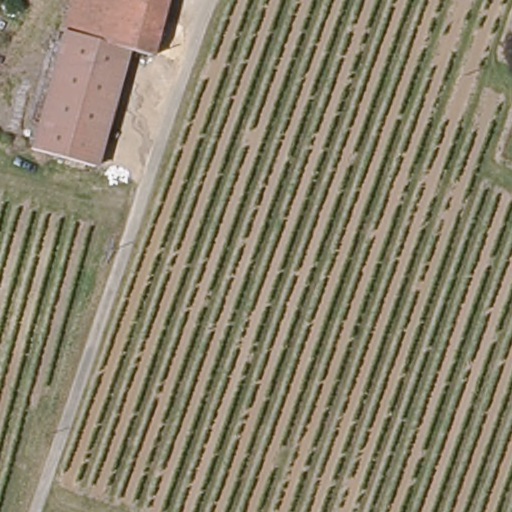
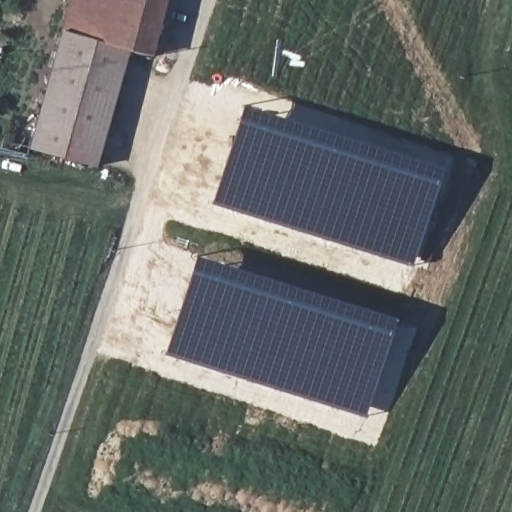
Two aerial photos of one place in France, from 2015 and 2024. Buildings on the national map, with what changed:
unchanged [(65,33),(62,32),(70,0),(164,0),(150,55),(131,50),(65,33)]
unchanged [(95,171),(30,151),(55,68),(65,33),(131,50),(95,171)]
new [(411,266),(212,203),(244,104),(444,166),(411,266)]
new [(364,416),(165,354),(195,255),(396,318),(364,416)]

